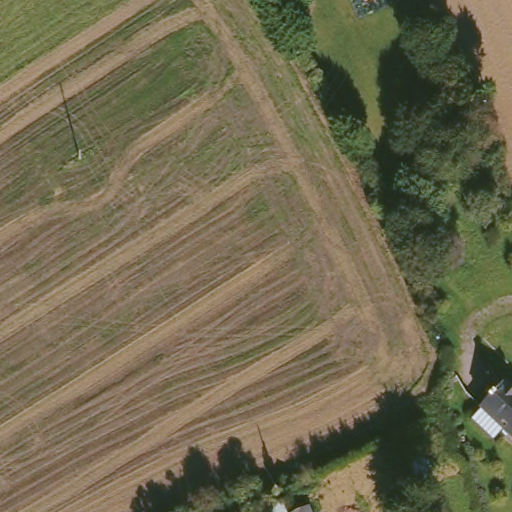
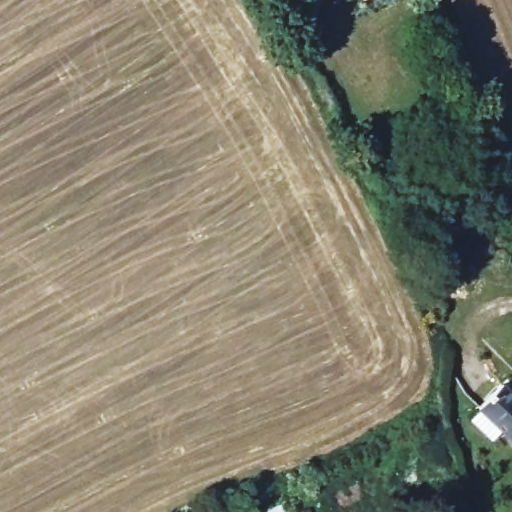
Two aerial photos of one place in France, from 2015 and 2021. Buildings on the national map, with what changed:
unchanged [(495,386),(497,388),(512,400),(512,438),(475,407),(495,386)]
unchanged [(307,512),(294,512),(306,508),(307,512)]

